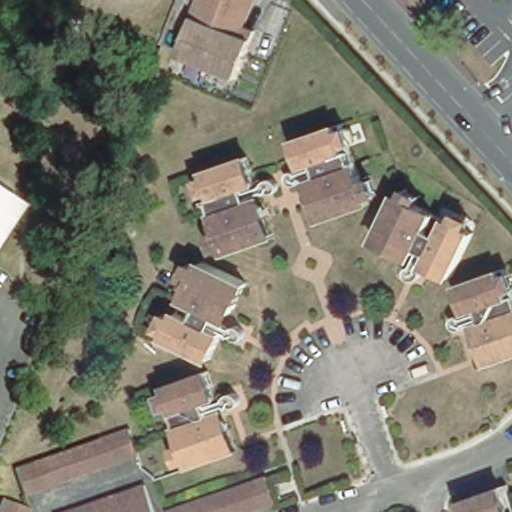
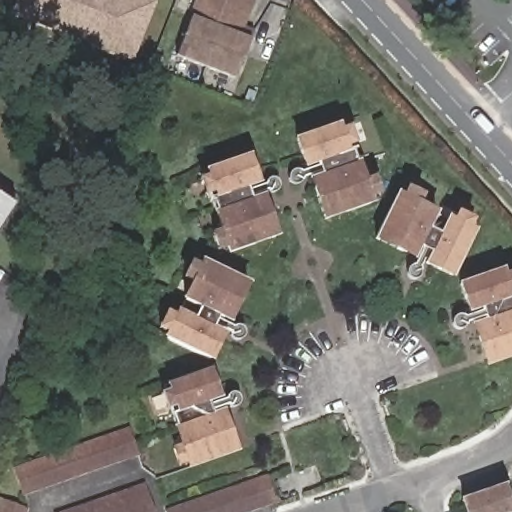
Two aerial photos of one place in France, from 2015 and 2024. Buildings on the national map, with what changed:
new [(10,14),(16,0),(152,0),(157,2),(134,62),(10,14)]
unchanged [(233,79),(201,67),(177,57),(193,14),(198,0),(249,0),(240,24),(245,25),(254,28),(233,79)]
unchanged [(378,200),(367,204),(369,209),(321,224),(307,183),(319,179),(315,169),(304,173),(293,144),(337,129),(338,133),(347,129),(353,149),(345,151),(347,157),(350,156),(360,186),(372,182),(378,200)]
unchanged [(216,232),(225,229),(215,200),(220,198),(218,193),(210,196),(203,177),(211,174),(210,169),(252,154),(263,184),(251,189),(255,198),(266,194),(281,236),(234,253),(232,246),(221,250),(216,232)]
unchanged [(450,282),(422,269),(428,256),(418,251),(411,264),(373,245),(396,199),(400,200),(405,192),(421,200),(417,209),(450,225),(455,216),(472,225),(468,234),(473,237),(450,282)]
unchanged [(0,232),(0,202),(14,211),(0,232)]
unchanged [(165,315),(174,319),(189,288),(180,283),(188,264),(198,269),(200,265),(247,288),(229,327),(216,321),(210,333),(224,339),(210,367),(162,343),(165,338),(156,334),(165,315)]
unchanged [(485,369),(471,329),(483,324),(480,314),(467,318),(457,289),(502,273),(505,278),(512,275),(512,294),(510,294),(512,299),(512,360),(485,369)]
unchanged [(171,454),(184,449),(172,413),(165,415),(159,398),(166,396),(164,389),(209,374),(220,404),(207,408),(211,418),(222,414),(237,456),(191,471),(190,467),(177,471),(171,454)]
unchanged [(24,494),(15,468),(127,429),(136,457),(24,494)]
unchanged [(256,483),(265,481),(275,508),(266,512),(265,512),(173,512),(256,483)]
unchanged [(461,505),(505,489),(508,488),(512,498),(512,512),(463,512),(461,505)]
unchanged [(145,494),(150,512),(92,512),(145,494)]
unchanged [(0,509),(6,512),(0,512),(0,509)]

